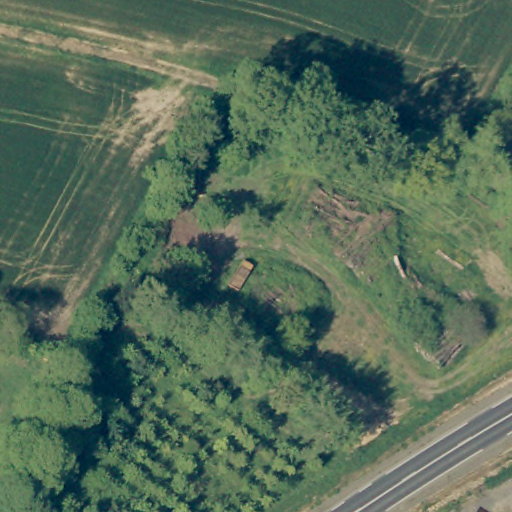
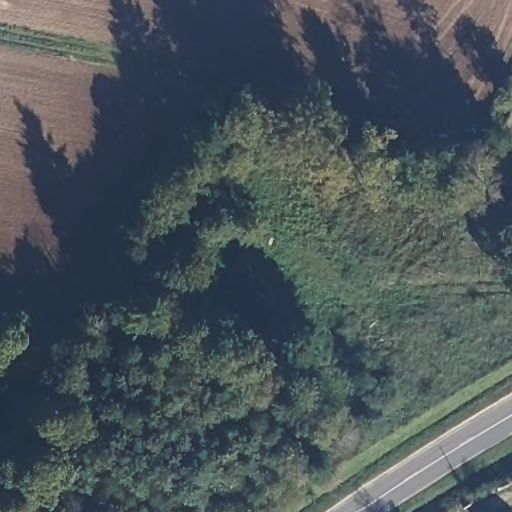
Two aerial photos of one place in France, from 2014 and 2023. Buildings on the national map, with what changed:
[]

